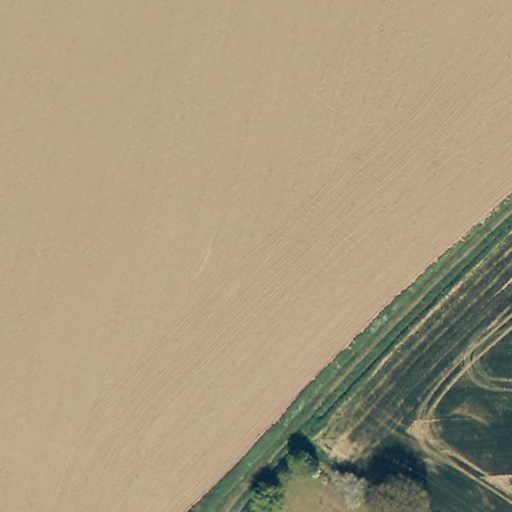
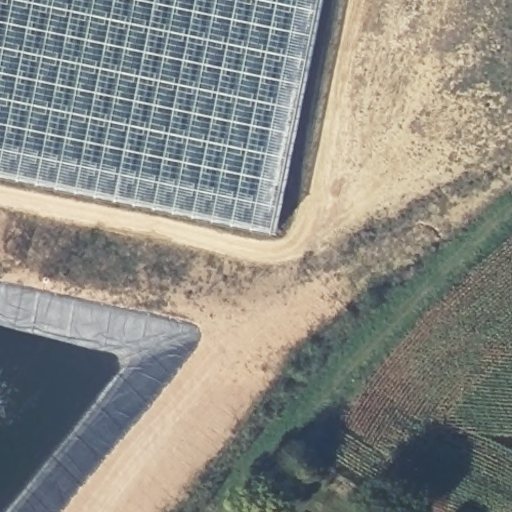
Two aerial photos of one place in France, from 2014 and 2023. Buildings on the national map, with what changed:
new [(325,0),(278,231),(0,174),(0,0),(325,0)]

